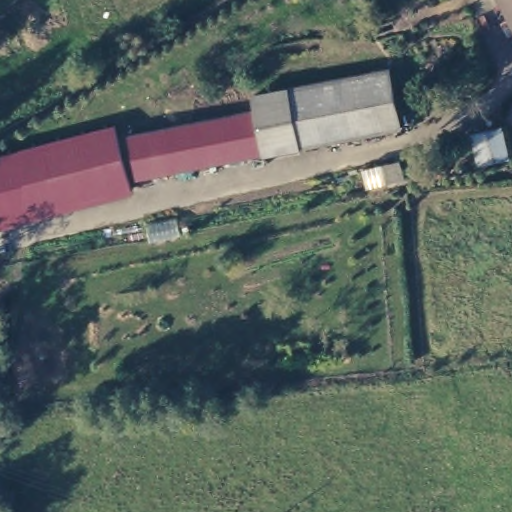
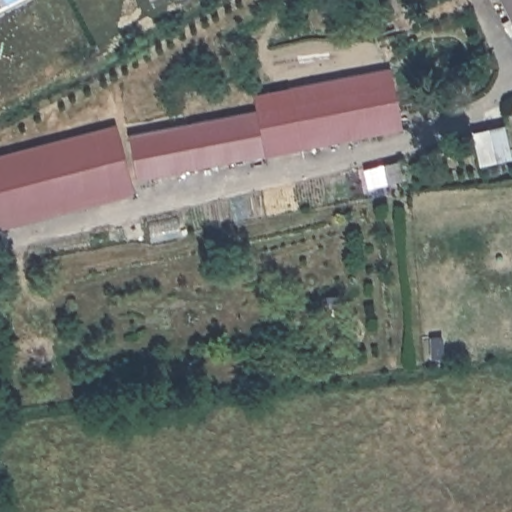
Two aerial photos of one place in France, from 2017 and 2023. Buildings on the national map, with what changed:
unchanged [(512,5),(509,0),(512,0),(512,5)]
unchanged [(402,132),(298,150),(287,92),(389,69),(402,132)]
unchanged [(261,157),(136,183),(126,139),(253,112),(261,157)]
unchanged [(134,197),(0,226),(0,154),(114,123),(134,197)]
unchanged [(502,129),(512,171),(478,181),(464,137),(502,129)]

